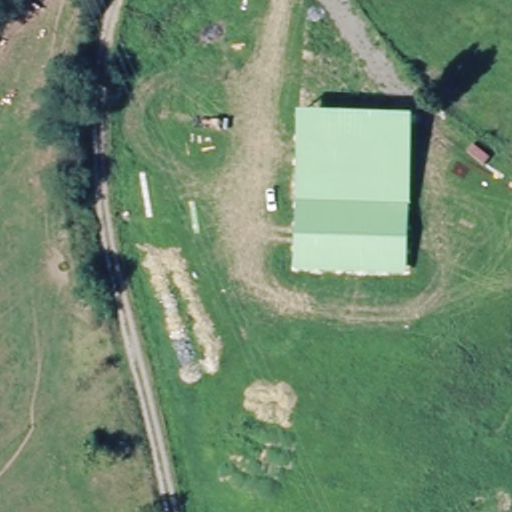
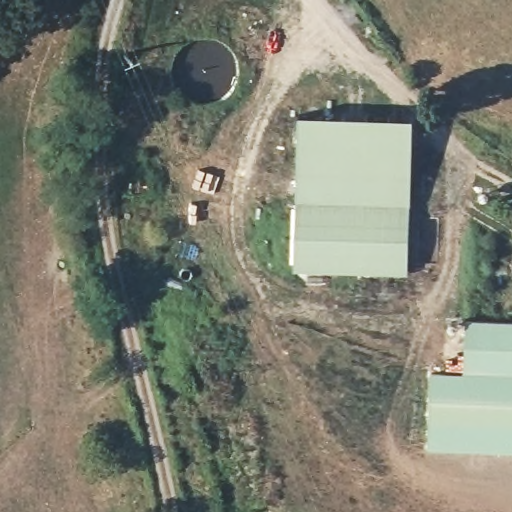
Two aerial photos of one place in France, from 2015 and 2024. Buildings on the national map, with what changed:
unchanged [(414,116),(407,276),(293,270),(298,113),(414,116)]
new [(464,373),(467,320),(512,322),(512,374),(464,373)]
new [(428,449),(431,371),(464,373),(512,374),(512,452),(428,449)]

